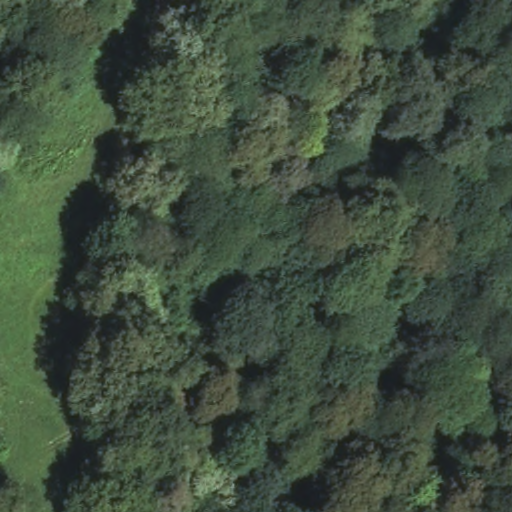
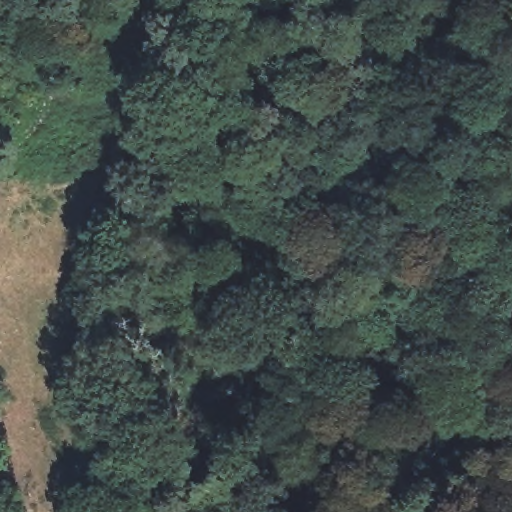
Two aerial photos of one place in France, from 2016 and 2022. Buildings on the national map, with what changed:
[]

